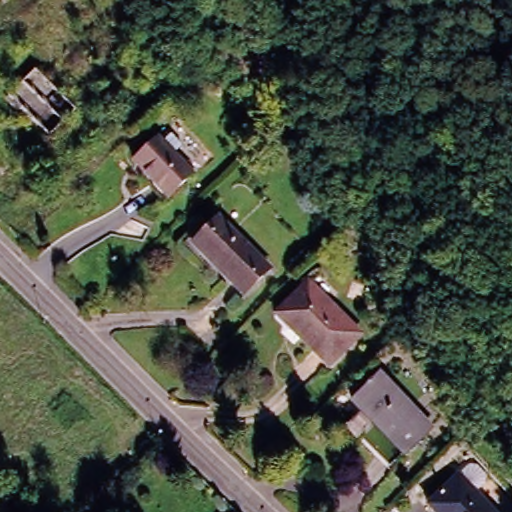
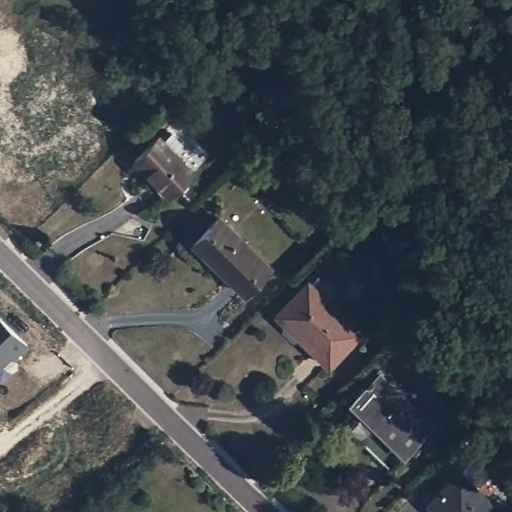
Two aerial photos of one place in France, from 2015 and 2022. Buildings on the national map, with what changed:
unchanged [(154,134),(157,138),(166,130),(178,141),(168,150),(187,169),(164,191),(130,156),(154,134)]
unchanged [(217,208),(270,260),(244,286),(192,233),(217,208)]
unchanged [(512,237),(512,252),(510,253),(502,245),(512,237)]
unchanged [(289,326),(274,312),(307,277),(360,329),(329,360),(292,324),(289,326)]
new [(14,359),(10,355),(4,360),(4,364),(0,369),(0,316),(29,344),(14,359)]
unchanged [(364,401),(354,392),(382,364),(392,375),(389,378),(407,395),(410,392),(437,417),(394,460),(349,417),(364,401)]
unchanged [(477,457),(487,467),(487,475),(477,485),(504,512),(442,512),(429,499),(471,457),(477,457)]

